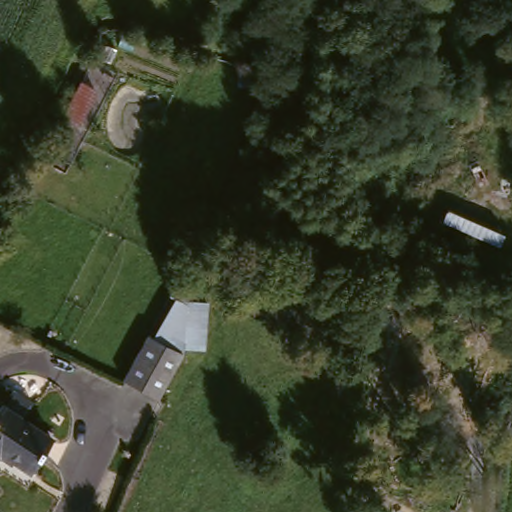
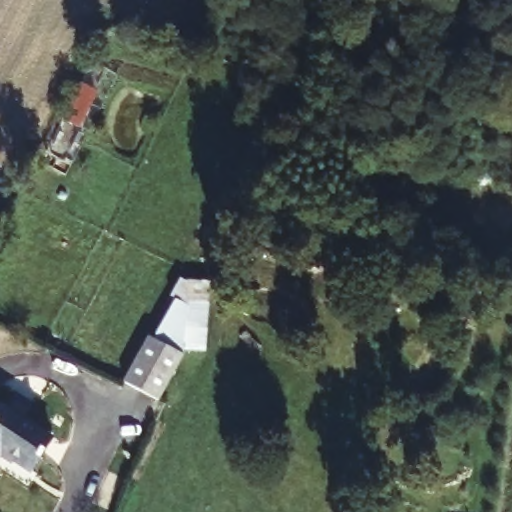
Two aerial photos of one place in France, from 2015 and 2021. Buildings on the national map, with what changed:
unchanged [(76,84),(97,94),(77,132),(57,122),(76,84)]
unchanged [(170,297),(208,300),(204,352),(187,348),(161,400),(119,382),(170,297)]
unchanged [(51,439),(30,472),(0,454),(0,410),(51,439)]

